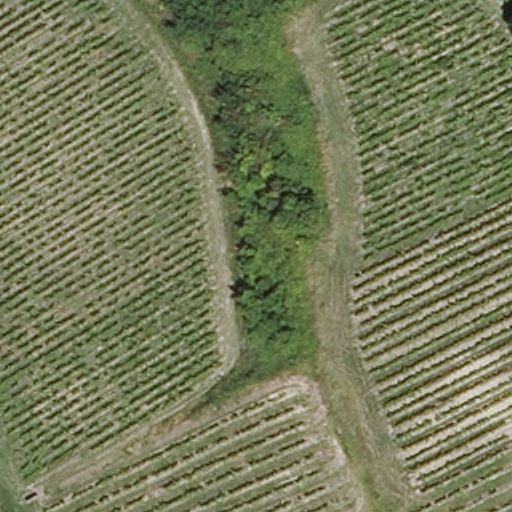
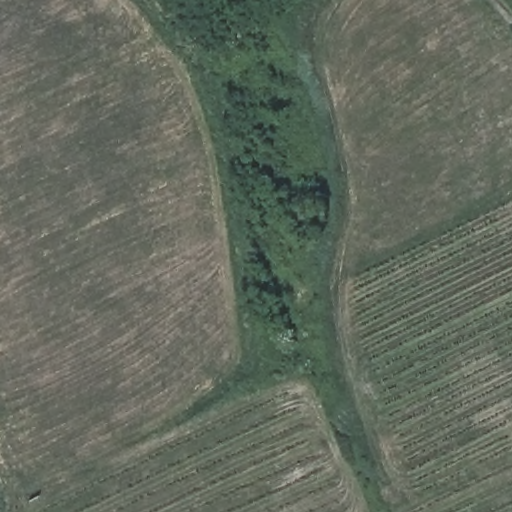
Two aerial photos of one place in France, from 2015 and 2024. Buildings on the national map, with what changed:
[]

